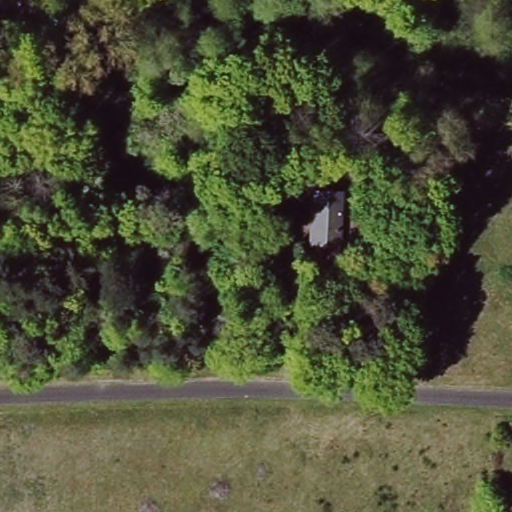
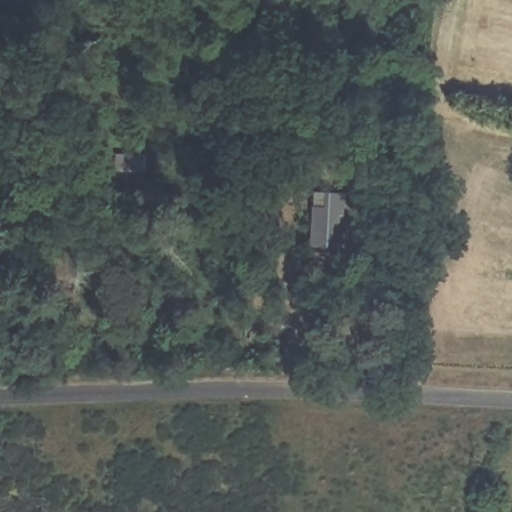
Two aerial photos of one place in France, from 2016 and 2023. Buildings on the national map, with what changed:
unchanged [(345,191),(342,247),(309,245),(312,190),(345,191)]

